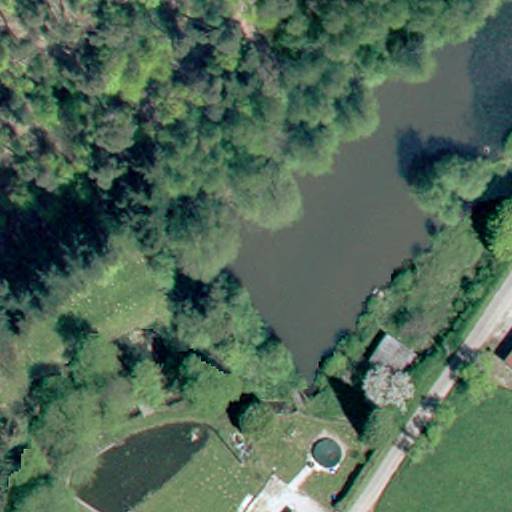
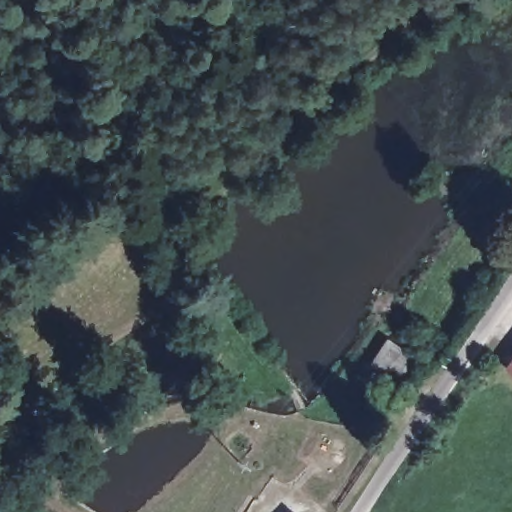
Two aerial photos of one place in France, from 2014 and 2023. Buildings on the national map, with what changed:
unchanged [(395,378),(385,371),(363,356),(381,330),(404,345),(401,348),(411,355),(395,378)]
unchanged [(512,356),(512,371),(504,365),(512,356)]

